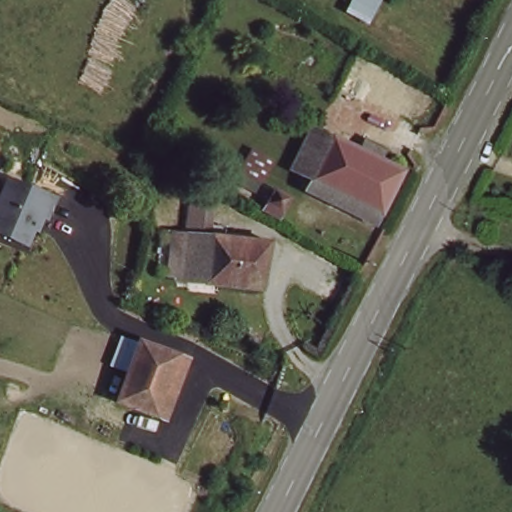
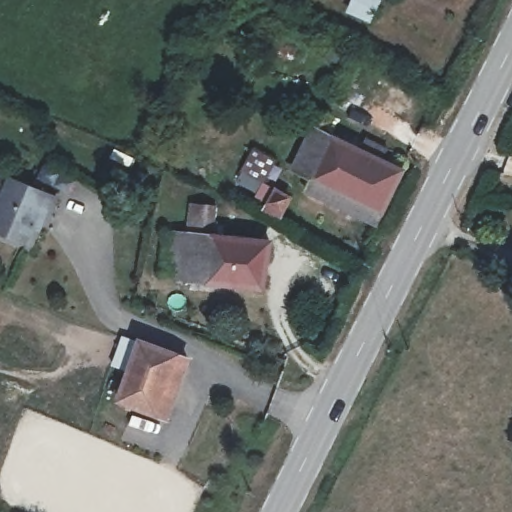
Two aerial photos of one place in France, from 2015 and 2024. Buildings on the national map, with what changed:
unchanged [(370,20),(345,6),(349,0),(380,0),(370,20)]
unchanged [(369,212),(302,178),(330,126),(395,160),(369,212)]
unchanged [(256,204),(270,176),(299,189),(285,218),(256,204)]
unchanged [(41,240),(23,231),(25,229),(6,221),(25,180),(68,198),(61,213),(54,210),(41,240)]
unchanged [(187,228),(189,201),(220,203),(217,229),(268,235),(266,288),(181,280),(187,228)]
unchanged [(162,415),(118,395),(145,335),(190,355),(162,415)]

